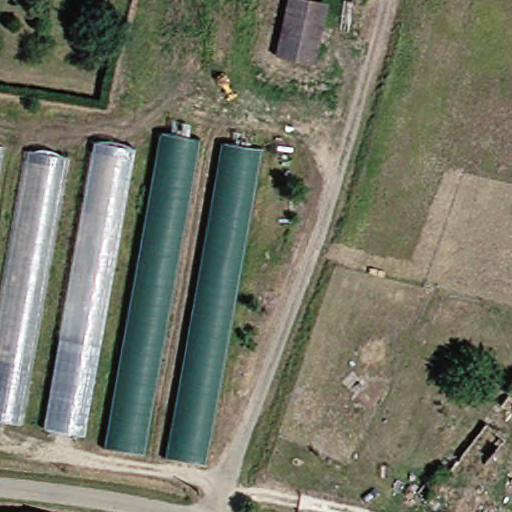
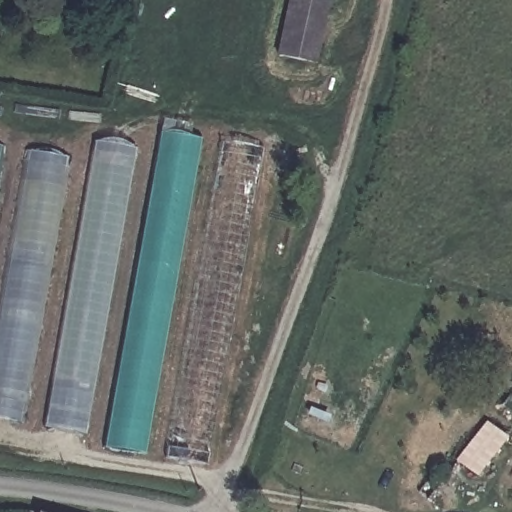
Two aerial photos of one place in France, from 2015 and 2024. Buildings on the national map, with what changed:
unchanged [(321,60),(287,54),(296,0),(328,0),(331,1),(321,60)]
unchanged [(161,132),(265,147),(207,465),(107,446),(161,132)]
unchanged [(142,152),(95,435),(50,430),(100,145),(142,152)]
unchanged [(10,149),(0,204),(0,147),(10,149)]
unchanged [(76,159),(31,423),(0,419),(0,338),(32,155),(76,159)]
new [(486,423),(506,438),(477,477),(457,462),(486,423)]

